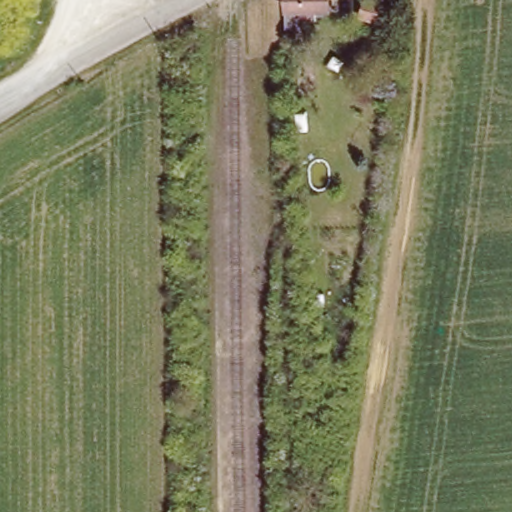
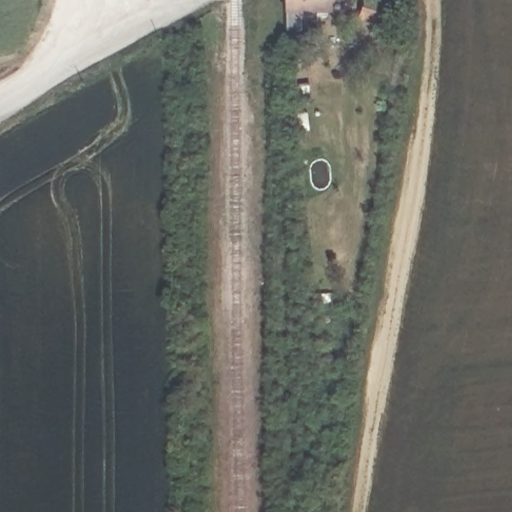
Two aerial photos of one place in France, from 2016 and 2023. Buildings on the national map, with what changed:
unchanged [(292,17),(291,4),(281,4),(281,0),(322,0),(322,3),(311,3),(312,16),(292,17)]

